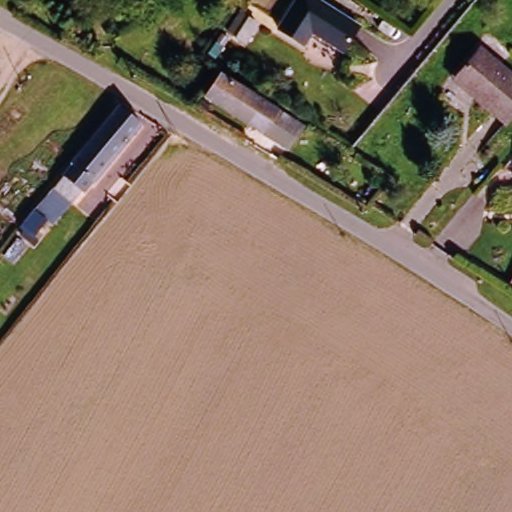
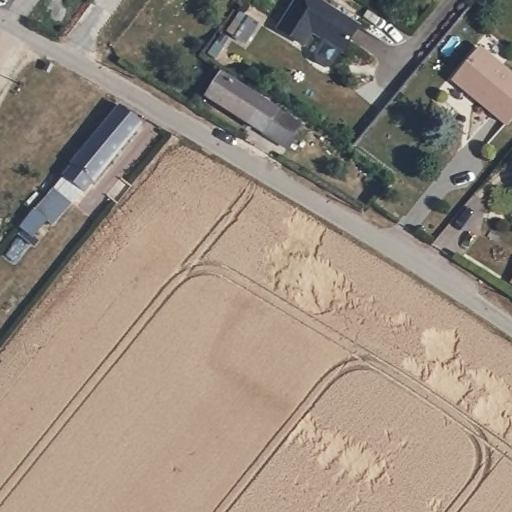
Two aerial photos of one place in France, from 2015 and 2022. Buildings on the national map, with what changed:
unchanged [(353,24),(337,50),(306,31),(299,44),(272,27),(290,0),(315,0),(353,24)]
unchanged [(505,126),(479,105),(482,101),(455,80),(479,51),(512,79),(512,118),(505,126)]
unchanged [(284,148),(262,135),(244,122),(201,95),(216,73),(257,100),(277,111),(299,125),(284,148)]
unchanged [(69,204),(51,189),(69,164),(68,164),(115,104),(137,122),(91,181),(90,180),(80,192),(79,191),(69,204)]
unchanged [(49,220),(35,237),(23,228),(37,211),(49,220)]

